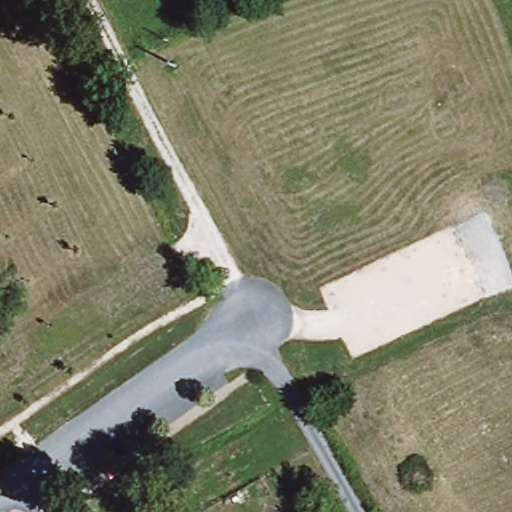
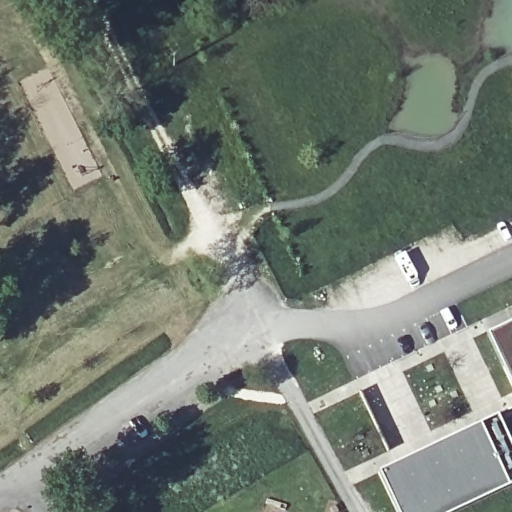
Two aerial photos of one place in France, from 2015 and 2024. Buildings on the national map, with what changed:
new [(512,386),(487,336),(512,323),(512,386)]
new [(512,411),(512,488),(461,512),(403,512),(384,469),(512,411)]

